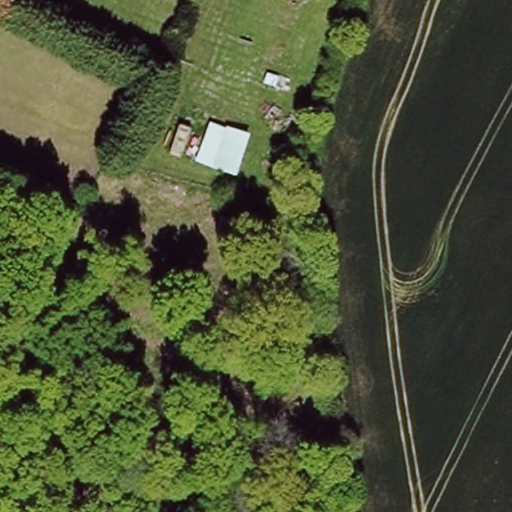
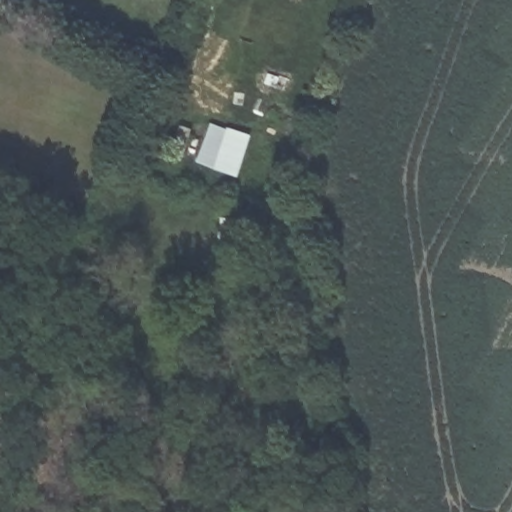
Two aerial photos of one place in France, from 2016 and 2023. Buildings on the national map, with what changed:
unchanged [(196,163),(210,123),(249,135),(237,177),(196,163)]

